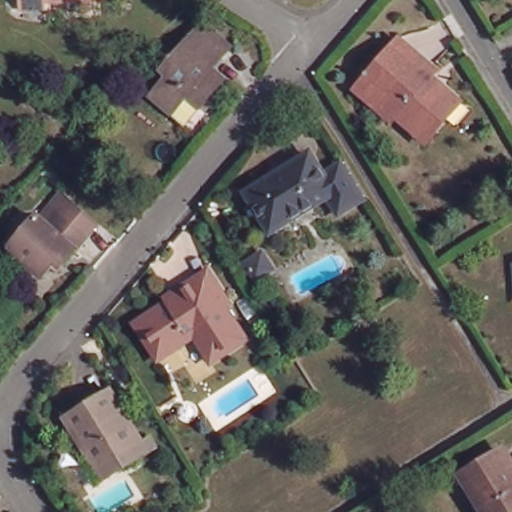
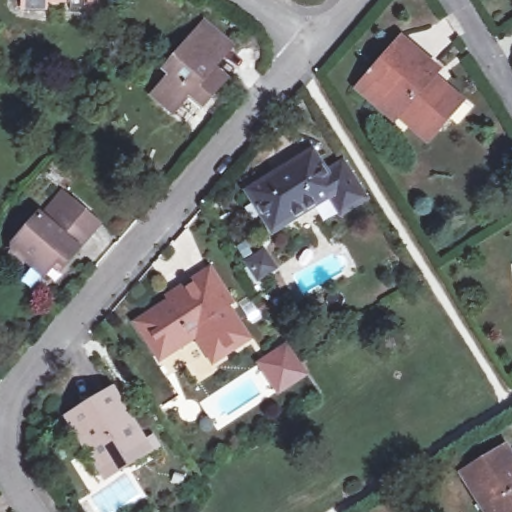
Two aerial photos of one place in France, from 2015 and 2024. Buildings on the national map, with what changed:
unchanged [(95,18),(75,17),(75,10),(53,10),(52,16),(28,15),(28,0),(95,0),(95,18)]
unchanged [(177,121),(155,102),(175,80),(169,75),(173,71),(174,64),(179,64),(207,31),(235,54),(217,74),(230,85),(225,91),(216,101),(217,102),(205,115),(192,104),(185,112),(177,121)]
unchanged [(389,109),(383,115),(356,90),(362,84),(395,47),(400,40),(437,70),(432,77),(425,85),(437,95),(443,87),(462,102),(437,131),(427,142),(409,127),(389,109)]
unchanged [(253,194),(316,156),(339,194),(276,232),(253,194)]
unchanged [(65,196),(103,230),(93,241),(63,217),(54,228),(44,220),(65,196)]
unchanged [(54,228),(63,217),(93,241),(69,268),(63,264),(47,282),(33,270),(38,266),(16,247),(41,217),(44,220),(54,228)]
unchanged [(266,258),(275,275),(259,284),(249,268),(266,258)]
unchanged [(230,302),(226,306),(248,341),(213,363),(196,337),(193,333),(175,345),(178,349),(160,361),(137,325),(174,302),(171,297),(178,292),(211,272),(230,302)]
new [(278,352),(275,347),(280,345),(283,350),(289,347),(305,373),(300,377),(277,391),(270,381),(259,363),(268,358),(278,352)]
unchanged [(97,486),(81,459),(89,455),(67,420),(112,392),(144,445),(149,453),(97,486)]
unchanged [(512,467),(512,512),(487,512),(464,474),(502,451),(512,467)]

